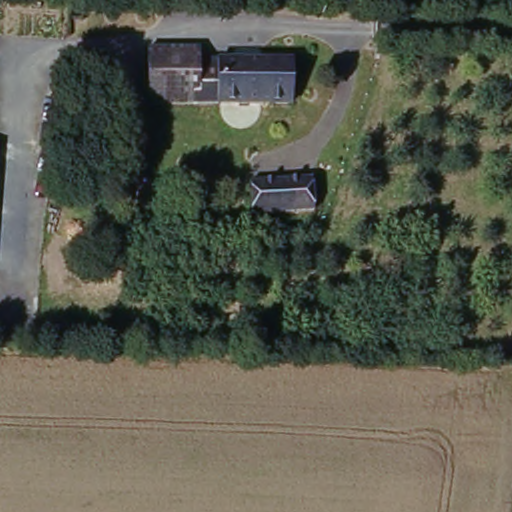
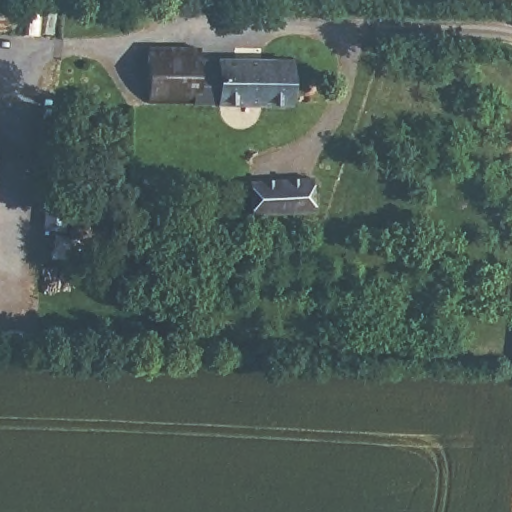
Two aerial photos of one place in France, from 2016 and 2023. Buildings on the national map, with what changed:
unchanged [(151,42),(199,42),(199,54),(291,55),(290,101),(150,97),(151,42)]
unchanged [(242,214),(239,180),(318,179),(319,211),(242,214)]

